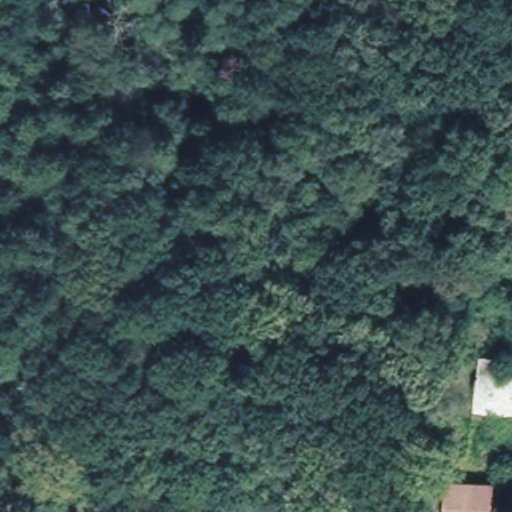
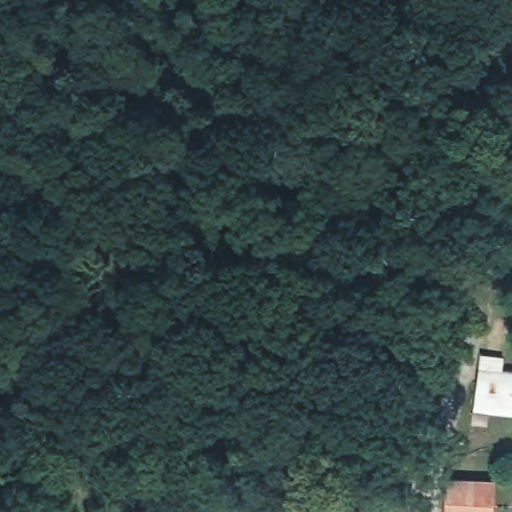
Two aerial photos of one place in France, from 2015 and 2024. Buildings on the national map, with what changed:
unchanged [(512,368),(512,414),(477,411),(481,366),(512,368)]
unchanged [(486,512),(450,512),(445,512),(448,478),(489,482),(486,512)]

